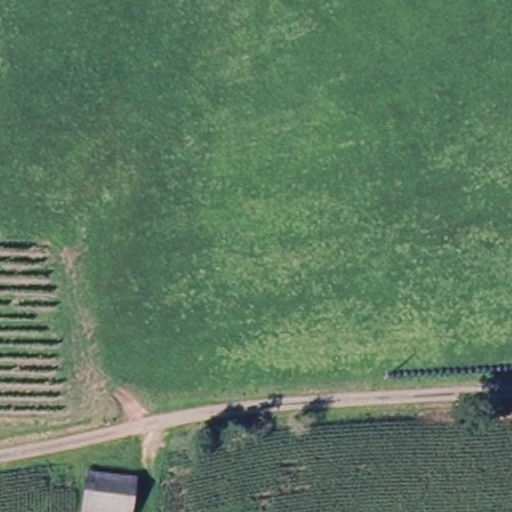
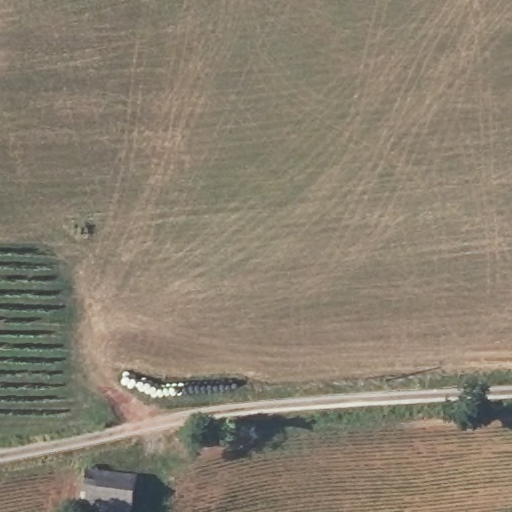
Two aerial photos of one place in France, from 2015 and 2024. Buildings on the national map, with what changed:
unchanged [(85,481),(135,487),(132,512),(81,512),(85,481)]

